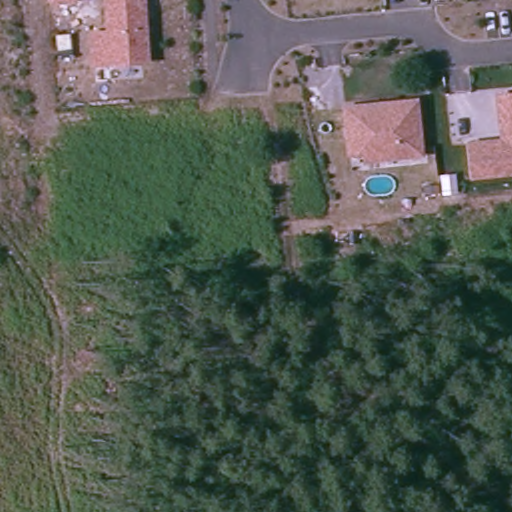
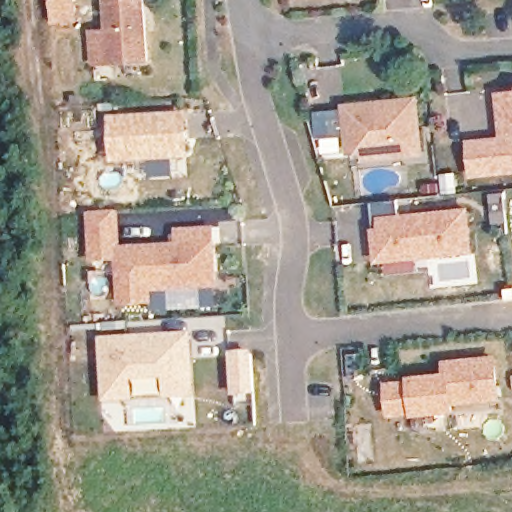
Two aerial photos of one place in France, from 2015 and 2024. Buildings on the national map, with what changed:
new [(80,22),(52,25),(51,0),(78,0),(80,22)]
unchanged [(148,60),(110,63),(105,0),(144,0),(148,60)]
unchanged [(472,174),(468,142),(488,140),(502,139),(502,126),(498,94),(512,92),(512,170),(472,174)]
unchanged [(348,137),(345,107),(360,105),(380,103),(416,99),(422,152),(367,159),(366,151),(350,152),(348,137)]
new [(187,114),(190,160),(112,165),(110,117),(187,114)]
new [(402,214),(471,208),(475,254),(417,261),(418,272),(388,276),(387,264),(375,265),(372,229),(375,229),(372,202),(400,200),(402,214)]
new [(120,212),(122,248),(176,245),(175,230),(215,228),(219,290),(152,294),(152,307),(119,308),(117,263),(90,266),(87,214),(120,212)]
new [(192,334),(196,398),(165,400),(164,381),(135,383),(135,402),(104,403),(100,338),(192,334)]
new [(232,398),(230,354),(254,353),(256,397),(232,398)]
new [(502,402),(456,407),(456,413),(412,418),(411,415),(388,417),(385,382),(408,381),(408,377),(443,373),(442,361),(497,356),(502,402)]

